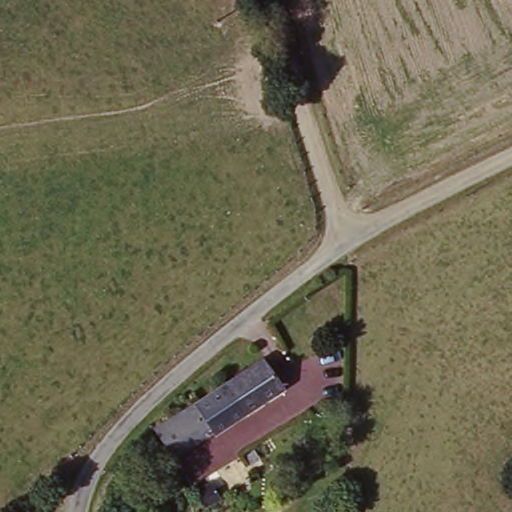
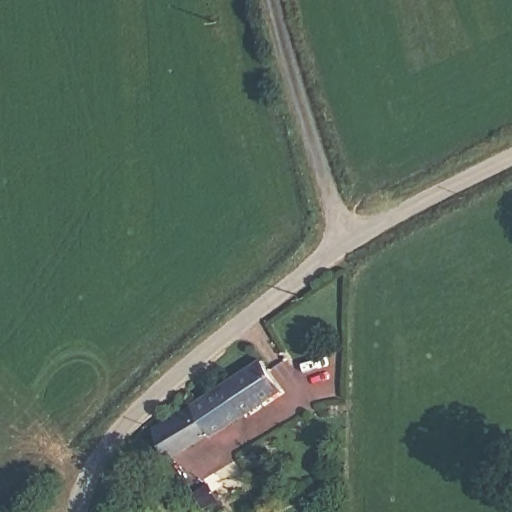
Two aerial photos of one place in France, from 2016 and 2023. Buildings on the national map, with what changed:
unchanged [(259,359),(276,387),(239,412),(234,412),(166,455),(148,427),(259,359)]

